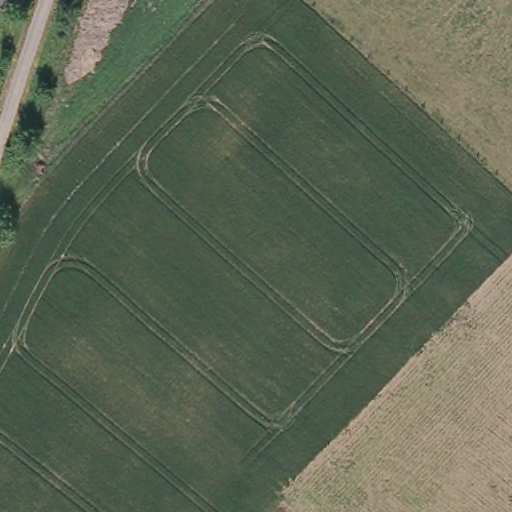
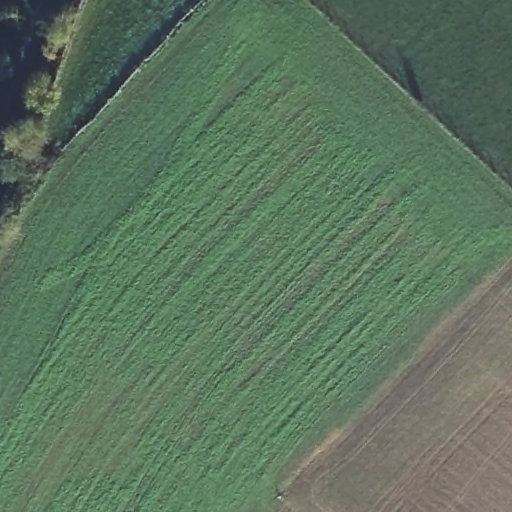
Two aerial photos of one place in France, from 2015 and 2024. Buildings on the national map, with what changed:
unchanged [(17,12),(0,5),(0,0),(23,0),(17,12)]

